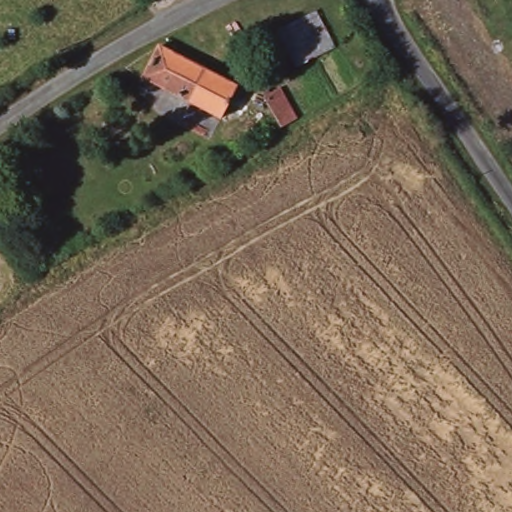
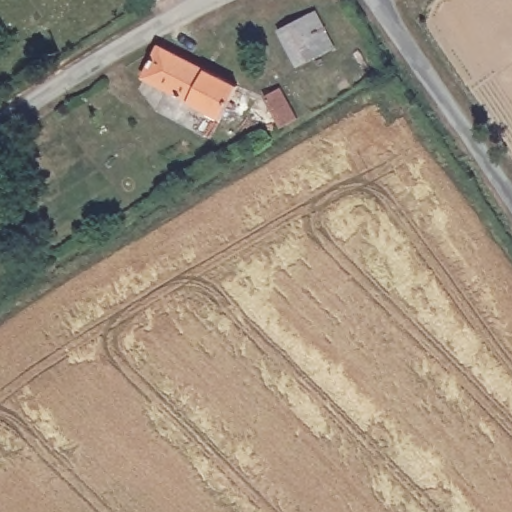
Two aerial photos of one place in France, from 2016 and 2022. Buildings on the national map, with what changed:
unchanged [(155,0),(158,0),(156,1),(155,0)]
unchanged [(296,63),(280,32),(317,13),(333,44),(296,63)]
unchanged [(238,85),(222,118),(192,101),(144,77),(160,45),(238,85)]
unchanged [(298,118),(281,127),(264,96),(280,87),(298,118)]

